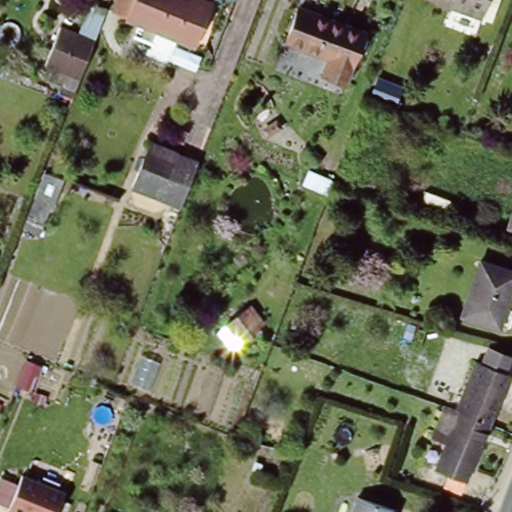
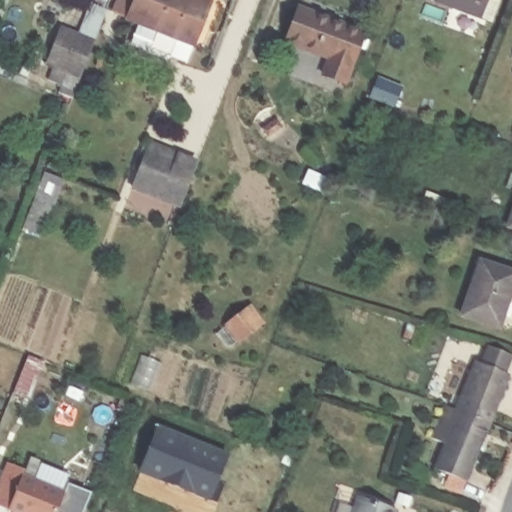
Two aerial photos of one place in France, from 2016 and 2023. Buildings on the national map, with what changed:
unchanged [(136,0),(213,0),(199,37),(182,31),(177,47),(160,40),(165,25),(131,12),(136,0)]
unchanged [(331,64),(336,50),(292,34),(304,0),(370,25),(354,72),(331,64)]
unchanged [(484,15),(441,0),(489,0),(484,15)]
unchanged [(47,62),(61,23),(95,36),(80,75),(47,62)]
unchanged [(203,157),(185,210),(130,188),(150,139),(203,157)]
unchanged [(65,178),(44,235),(22,227),(45,171),(65,178)]
unchanged [(376,205),(350,196),(355,180),(382,189),(376,205)]
unchanged [(507,228),(512,214),(512,230),(507,228)]
unchanged [(271,246),(279,226),(293,232),(285,251),(271,246)]
unchanged [(501,327),(456,313),(481,251),(512,264),(512,300),(501,327)]
unchanged [(235,346),(220,324),(252,295),(268,319),(235,346)]
unchanged [(512,366),(512,380),(467,486),(450,479),(451,475),(441,471),(446,461),(441,459),(451,434),(435,428),(448,396),(453,398),(458,386),(466,389),(481,353),(512,366)]
new [(211,502),(139,473),(156,424),(229,453),(211,502)]
unchanged [(56,512),(13,512),(7,509),(22,472),(65,489),(56,512)]
unchanged [(393,512),(350,512),(357,492),(396,506),(393,512)]

